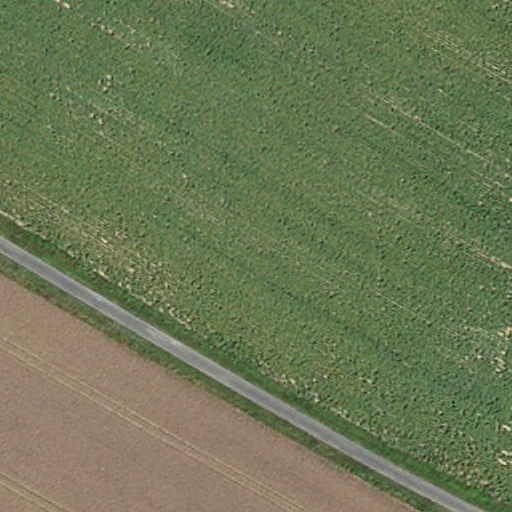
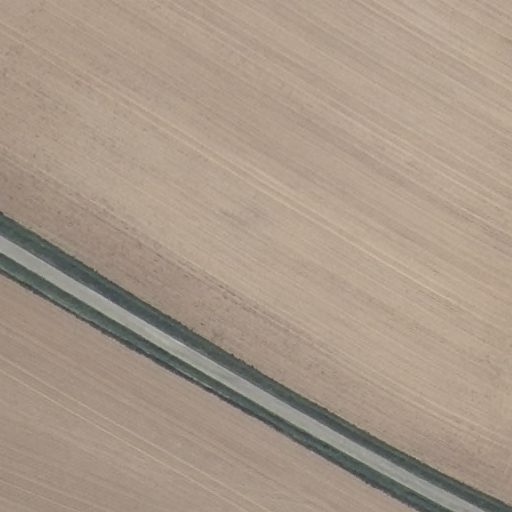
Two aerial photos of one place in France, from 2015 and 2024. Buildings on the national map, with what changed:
[]

